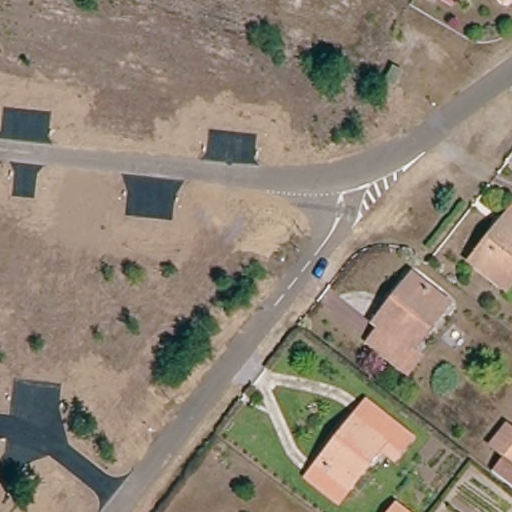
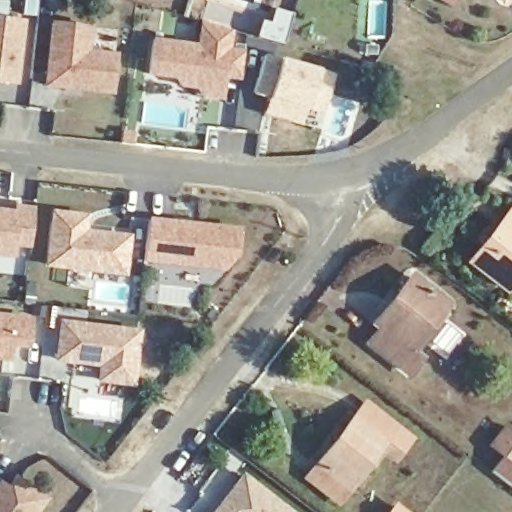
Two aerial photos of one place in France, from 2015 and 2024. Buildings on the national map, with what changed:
unchanged [(442,0),(458,0),(454,7),(442,0)]
unchanged [(494,0),(507,0),(499,7),(494,0)]
new [(259,19),(268,21),(272,7),(290,13),(281,46),(254,37),(259,19)]
new [(22,23),(15,83),(0,81),(0,20),(22,23)]
new [(45,87),(52,24),(90,27),(87,52),(115,55),(111,93),(82,90),(64,89),(45,87)]
new [(198,44),(200,25),(232,32),(230,49),(242,50),(241,82),(226,80),(223,101),(198,97),(198,90),(175,88),(176,81),(149,78),(153,39),(198,44)]
new [(282,58),(318,70),(334,76),(325,115),(307,110),(302,127),(263,117),(268,99),(253,95),(264,54),(282,58)]
unchanged [(15,215),(16,209),(33,210),(29,247),(13,246),(12,257),(0,256),(0,213),(15,215)]
new [(90,214),(89,230),(132,235),(129,277),(45,267),(52,210),(90,214)]
unchanged [(471,263),(512,212),(512,282),(505,291),(471,263)]
new [(148,221),(237,231),(235,256),(223,270),(143,261),(148,221)]
unchanged [(446,307),(409,353),(418,361),(407,374),(370,345),(381,331),(375,326),(412,280),(446,307)]
new [(34,317),(30,350),(13,348),(11,362),(0,361),(0,313),(34,317)]
new [(97,380),(99,367),(55,361),(59,319),(143,328),(135,386),(97,380)]
unchanged [(369,398),(413,433),(397,453),(383,442),(388,435),(358,412),(369,398)]
unchanged [(310,474),(320,461),(358,412),(388,435),(383,442),(350,484),(340,497),(310,474)]
unchanged [(498,458),(485,448),(502,428),(512,436),(512,494),(486,474),(498,458)]
new [(243,472),(294,512),(212,512),(243,472)]
unchanged [(7,491),(15,480),(44,501),(36,512),(0,512),(0,486),(7,491)]
unchanged [(396,509),(400,512),(394,512),(396,509)]

